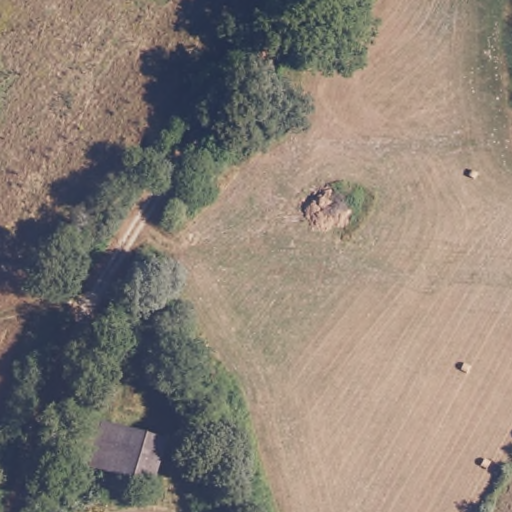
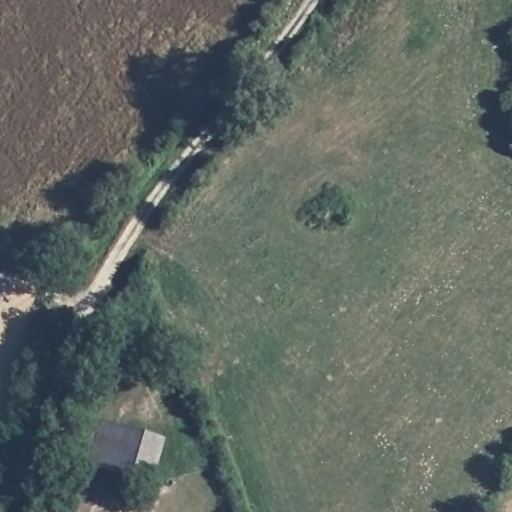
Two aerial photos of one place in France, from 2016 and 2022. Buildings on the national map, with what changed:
unchanged [(74,462),(87,417),(166,441),(152,486),(74,462)]

